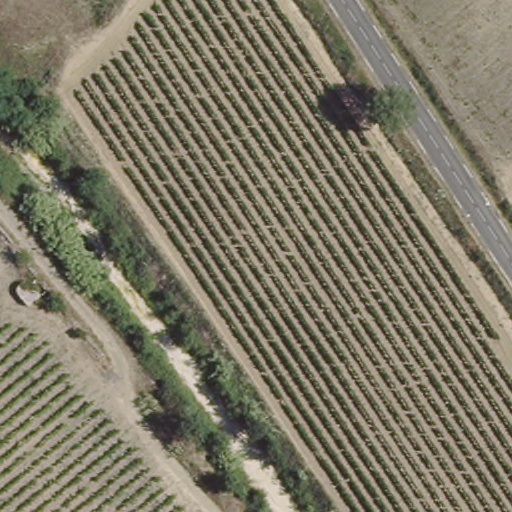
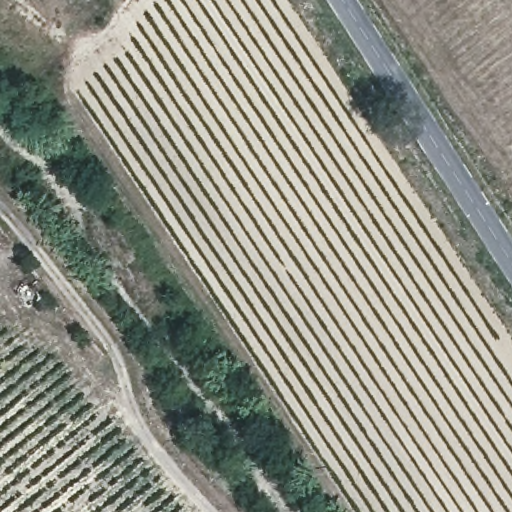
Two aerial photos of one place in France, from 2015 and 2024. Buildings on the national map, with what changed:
unchanged [(12,291),(30,280),(42,297),(27,307),(12,291)]

